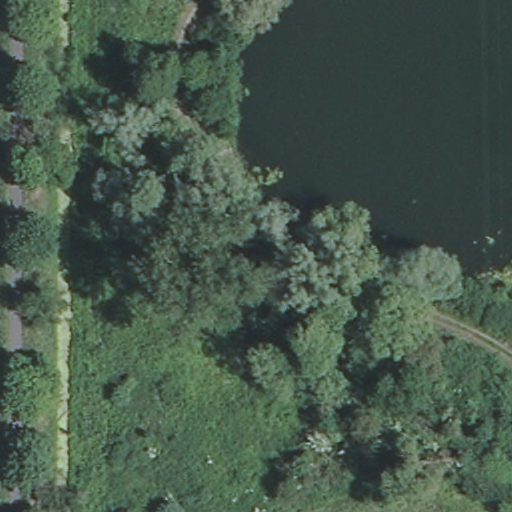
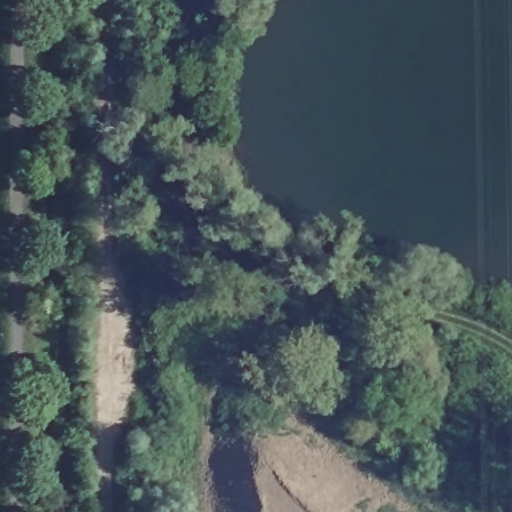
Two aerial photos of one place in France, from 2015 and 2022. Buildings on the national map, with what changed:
[]

